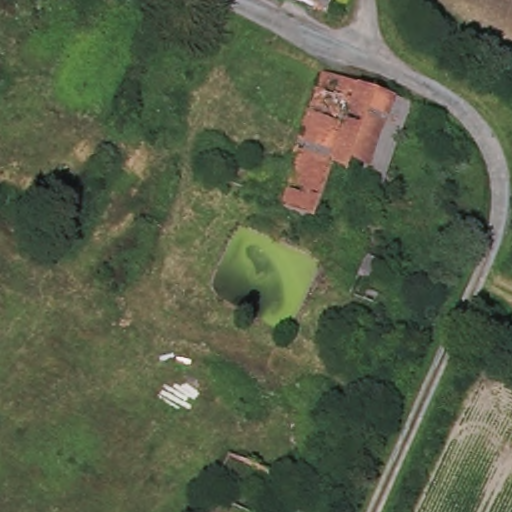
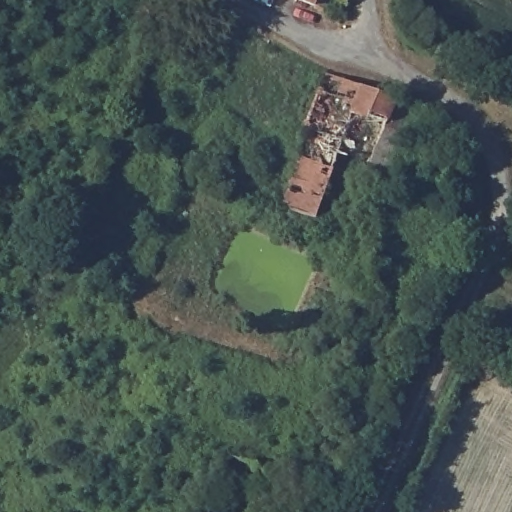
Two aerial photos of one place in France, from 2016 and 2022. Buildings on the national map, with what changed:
unchanged [(290,0),(321,0),(318,12),(290,0)]
unchanged [(358,87),(399,101),(369,184),(335,171),(315,220),(281,208),(301,158),(292,154),(322,73),(358,87)]
unchanged [(80,210),(74,225),(51,216),(58,200),(80,210)]
unchanged [(387,253),(373,282),(382,286),(378,295),(355,285),(372,246),(387,253)]

